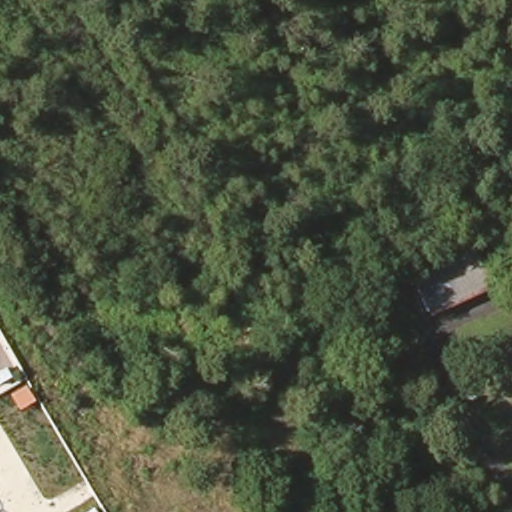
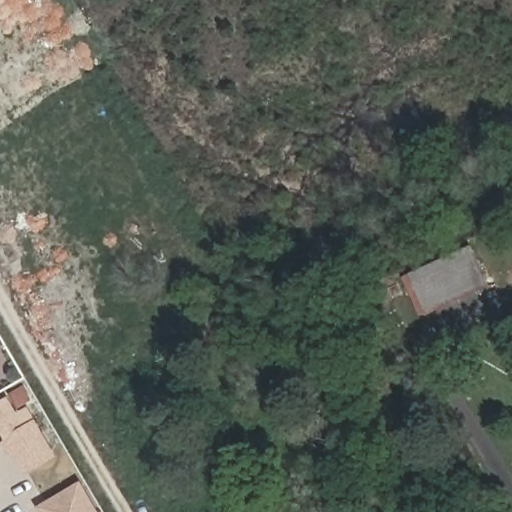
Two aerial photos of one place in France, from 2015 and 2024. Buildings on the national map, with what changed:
unchanged [(480,254),(491,282),(425,311),(412,281),(480,254)]
new [(58,459),(31,475),(0,428),(0,403),(10,397),(19,411),(28,407),(58,459)]
new [(84,479),(102,512),(35,512),(32,508),(84,479)]

